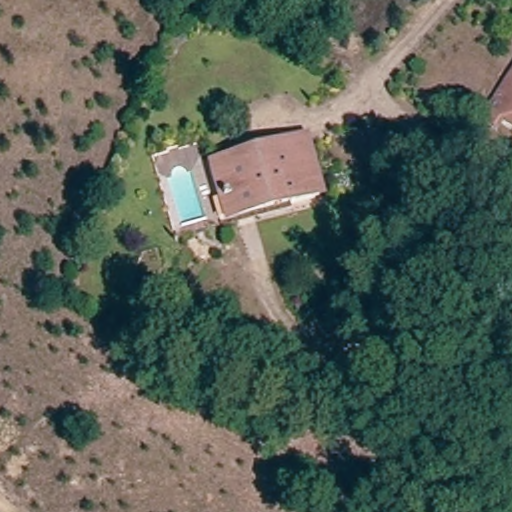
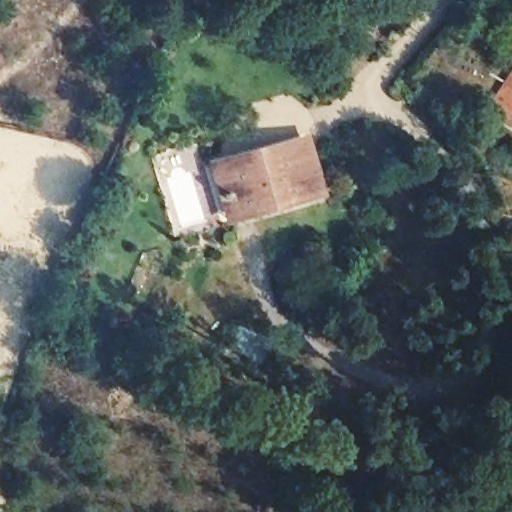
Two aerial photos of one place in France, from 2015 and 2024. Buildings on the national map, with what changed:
unchanged [(487,119),(493,109),(512,76),(512,120),(508,118),(500,128),(487,119)]
unchanged [(308,136),(327,198),(217,229),(204,167),(308,136)]

